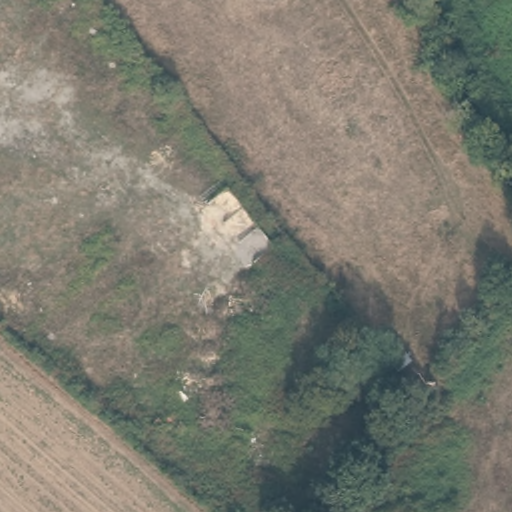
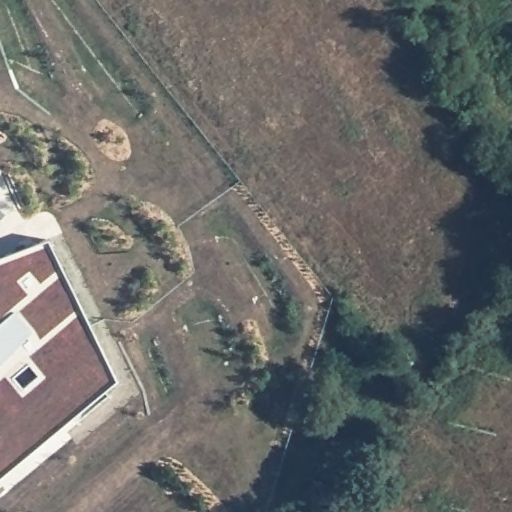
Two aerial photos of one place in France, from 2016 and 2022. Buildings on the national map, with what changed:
new [(113,382),(0,477),(0,256),(44,240),(113,382)]

